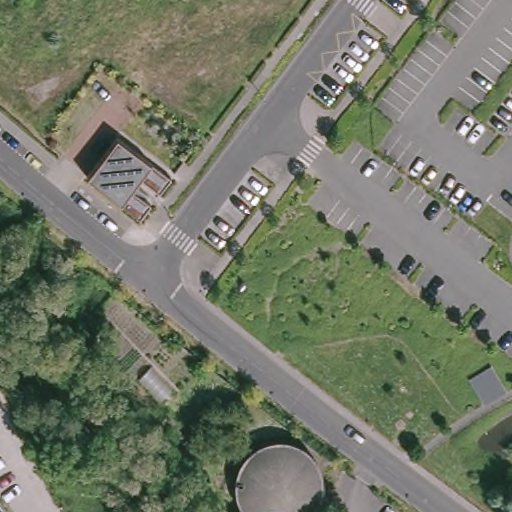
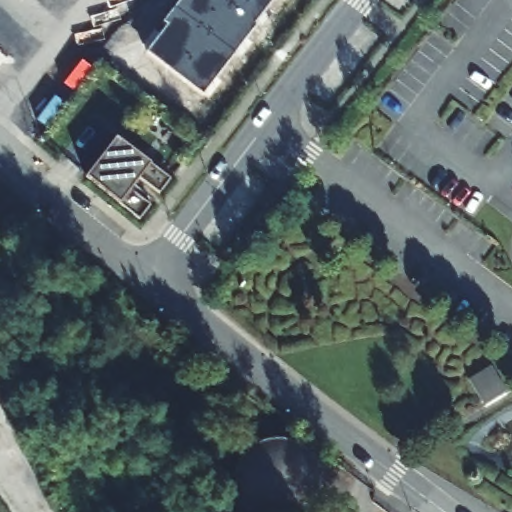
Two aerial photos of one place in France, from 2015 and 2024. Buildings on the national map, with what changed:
new [(163,23),(180,0),(270,0),(253,23),(256,25),(203,94),(146,51),(167,27),(163,23)]
unchanged [(128,188),(150,205),(138,219),(118,203),(81,176),(114,134),(148,158),(169,178),(158,191),(138,173),(128,188)]
unchanged [(509,388),(486,401),(471,376),(494,363),(509,388)]

